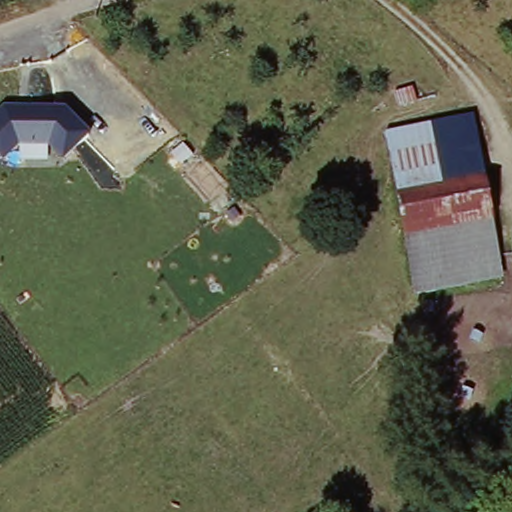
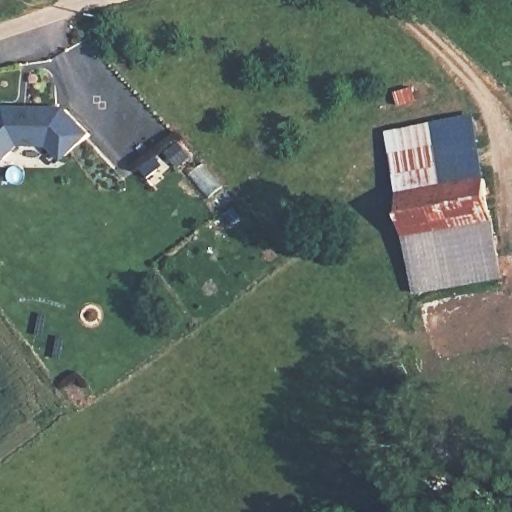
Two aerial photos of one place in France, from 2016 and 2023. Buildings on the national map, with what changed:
unchanged [(64,160),(49,146),(19,147),(4,160),(0,156),(0,111),(6,105),(68,105),(94,133),(64,160)]
unchanged [(396,145),(479,132),(489,187),(407,203),(396,145)]
unchanged [(489,187),(491,194),(495,222),(413,234),(407,203),(489,187)]
unchanged [(507,281),(423,292),(413,234),(495,222),(507,281)]

